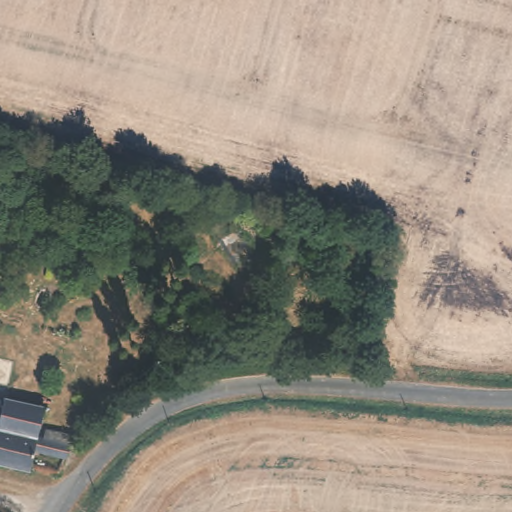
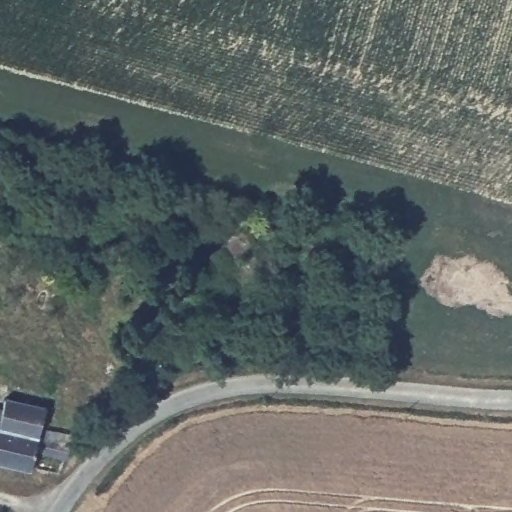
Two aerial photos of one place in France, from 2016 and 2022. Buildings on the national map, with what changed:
unchanged [(37,405),(32,435),(0,428),(0,398),(37,405)]
unchanged [(32,435),(61,440),(58,455),(27,449),(23,467),(0,463),(0,428),(32,435)]

